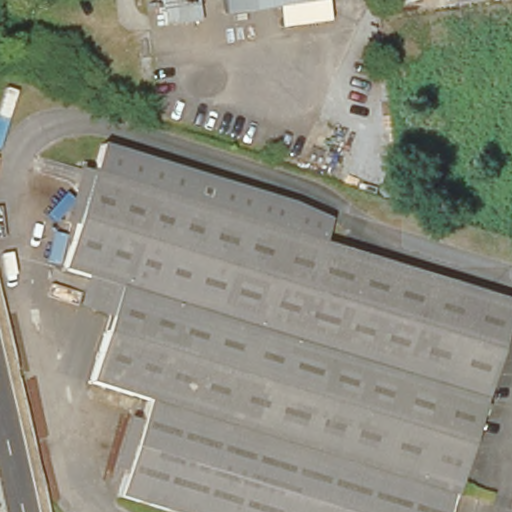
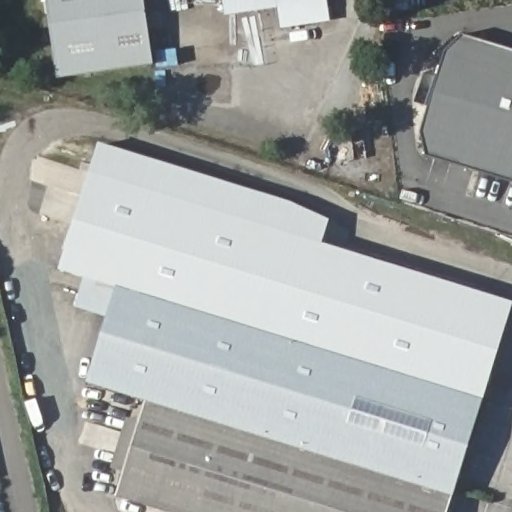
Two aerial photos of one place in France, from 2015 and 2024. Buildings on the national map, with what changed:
new [(153,65),(59,78),(47,0),(144,0),(153,65)]
unchanged [(328,22),(278,28),(276,6),(223,16),(220,0),(325,0),(328,22)]
new [(420,131),(446,51),(465,34),(512,49),(512,182),(426,154),(420,131)]
unchanged [(78,280),(52,272),(82,174),(93,145),(162,166),(215,182),(275,200),(301,209),(323,220),(314,245),(505,302),(441,512),(165,512),(109,494),(138,400),(83,384),(105,314),(112,291),(78,280)]

